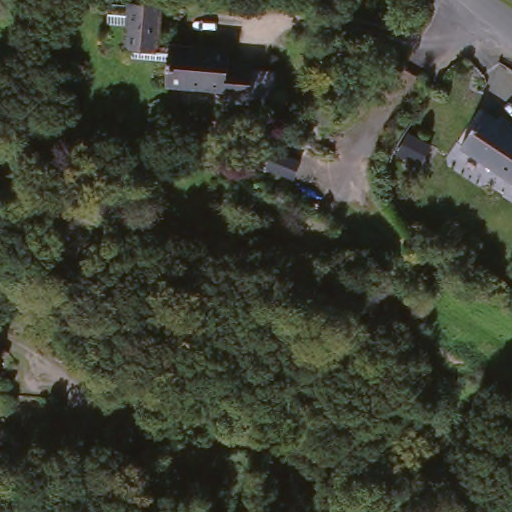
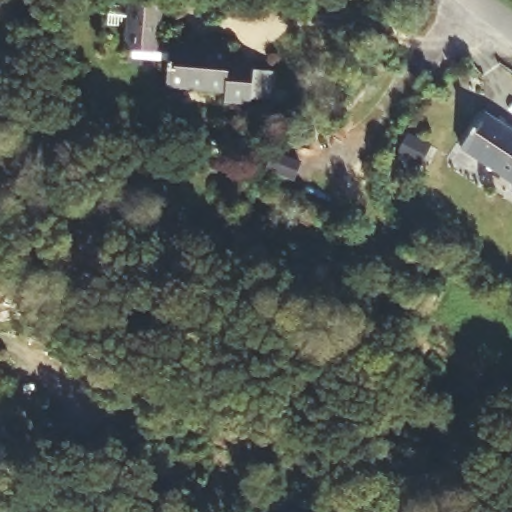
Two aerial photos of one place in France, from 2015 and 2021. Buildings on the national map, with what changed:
unchanged [(134,45),(134,34),(122,34),(128,0),(162,0),(160,30),(169,31),(167,49),(134,45)]
unchanged [(232,38),(231,48),(282,52),(281,56),(306,58),(302,91),(277,87),(277,93),(227,88),(227,78),(166,72),(167,49),(169,31),(232,38)]
unchanged [(456,153),(480,121),(512,144),(512,191),(456,153)]

